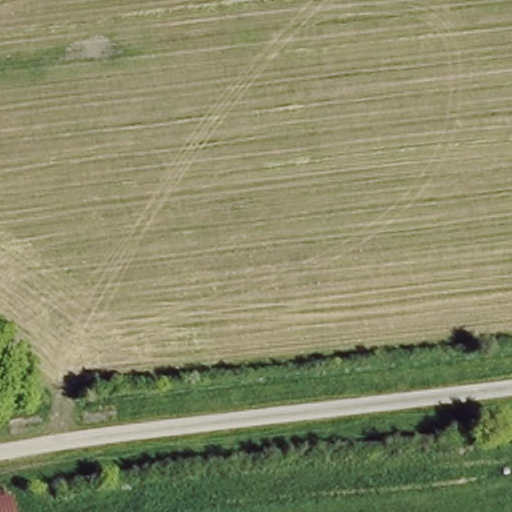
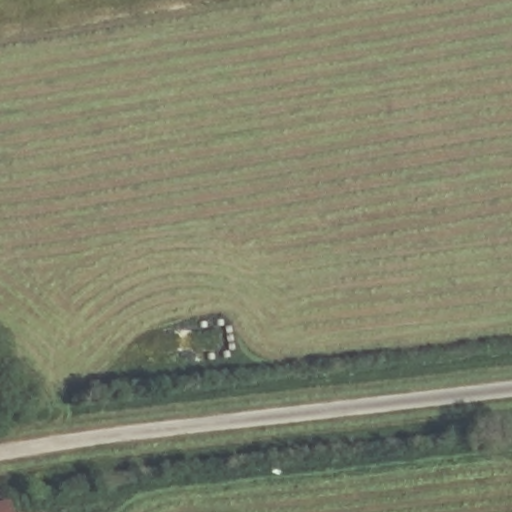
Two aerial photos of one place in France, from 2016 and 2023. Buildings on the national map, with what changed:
unchanged [(12,499),(15,512),(0,512),(0,501),(12,499)]

